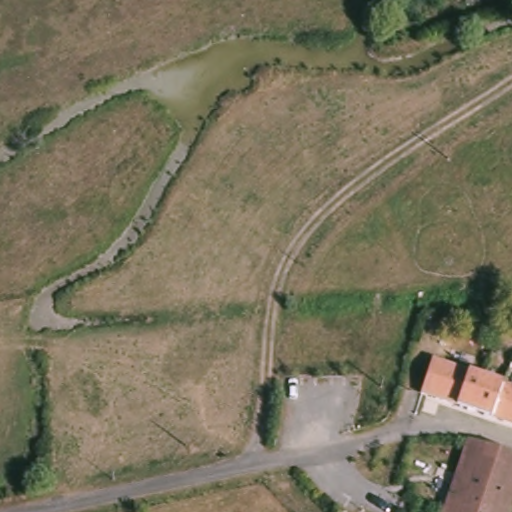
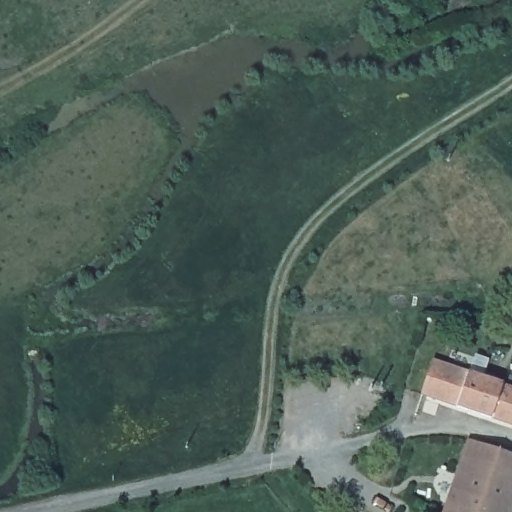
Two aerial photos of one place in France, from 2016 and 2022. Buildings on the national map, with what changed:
unchanged [(512,420),(417,387),(428,357),(512,385),(512,420)]
unchanged [(512,456),(512,512),(448,512),(475,442),(512,456)]

